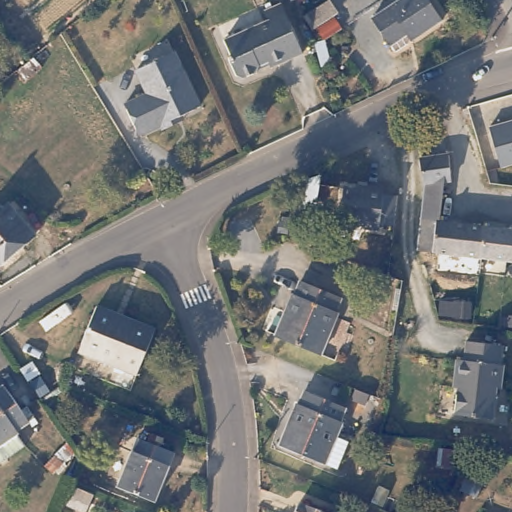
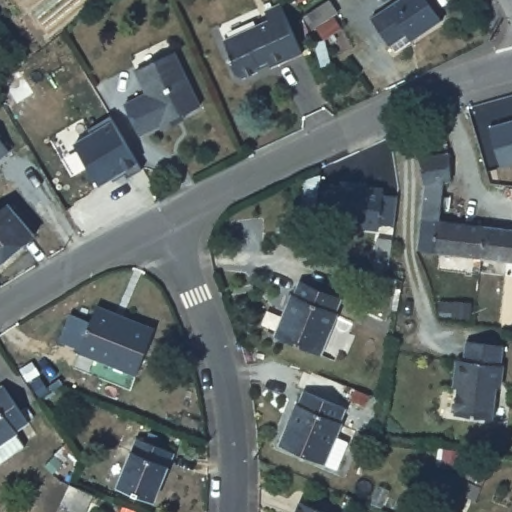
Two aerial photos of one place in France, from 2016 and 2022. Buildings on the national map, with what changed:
unchanged [(269,6),(282,0),(285,0),(307,48),(275,62),(272,57),(263,61),(261,66),(247,73),(241,70),(232,53),(236,51),(228,35),(273,15),(269,6)]
unchanged [(315,25),(305,12),(312,8),(320,2),(323,0),(333,0),(339,8),(315,25)]
unchanged [(370,12),(387,0),(428,0),(437,14),(411,33),(410,31),(394,43),(388,36),(370,12)]
unchanged [(343,24),(326,36),(318,26),(336,13),(343,24)]
unchanged [(142,124),(128,94),(151,84),(140,60),(178,42),(204,95),(186,104),(187,109),(166,119),(164,114),(142,124)]
new [(91,133),(87,129),(112,114),(114,120),(138,161),(142,168),(127,175),(125,170),(100,184),(74,143),(91,133)]
unchanged [(512,121),(512,164),(502,167),(490,127),(512,121)]
new [(0,158),(0,134),(12,149),(0,158)]
unchanged [(412,249),(416,217),(418,195),(418,185),(418,184),(415,158),(445,154),(447,180),(440,181),(438,193),(435,219),(512,228),(512,261),(412,249)]
unchanged [(392,224),(377,223),(376,228),(359,227),(359,224),(337,222),(337,220),(340,187),(362,189),(363,187),(380,189),(380,194),(395,195),(392,224)]
unchanged [(307,207),(308,229),(292,230),(288,201),(306,199),(307,207)]
unchanged [(0,256),(0,201),(28,228),(0,256)]
unchanged [(336,292),(330,306),(333,308),(314,349),(270,328),(287,287),(290,288),(296,274),(336,292)]
unchanged [(157,325),(140,370),(82,348),(98,303),(157,325)]
unchanged [(451,376),(454,358),(462,359),(465,339),(502,346),(498,364),(501,365),(498,383),(493,387),(488,418),(451,412),(455,386),(450,385),(451,376)]
unchanged [(13,421),(24,438),(0,453),(0,378),(26,412),(13,421)]
unchanged [(340,401),(335,413),(337,414),(331,429),(342,434),(331,462),(274,439),(289,398),(292,399),(297,384),(340,401)]
unchanged [(169,452),(152,502),(116,489),(132,439),(169,452)]
unchanged [(86,480),(77,501),(55,491),(62,470),(86,480)]
unchanged [(326,512),(286,512),(292,498),(326,512)]

